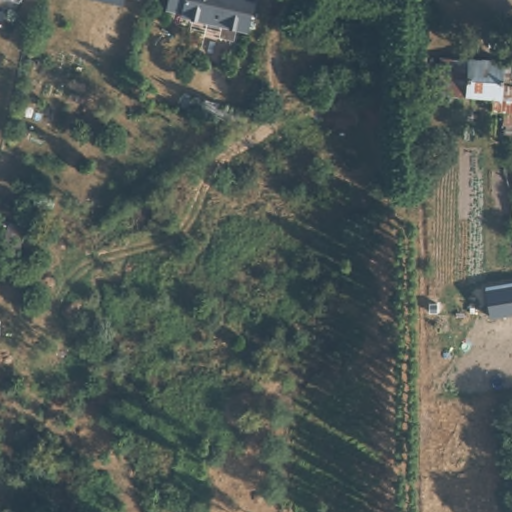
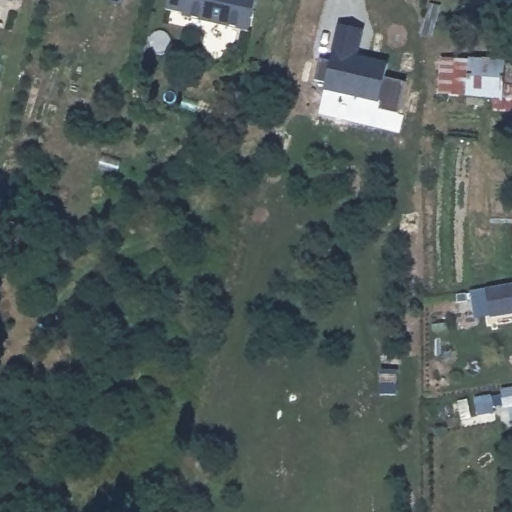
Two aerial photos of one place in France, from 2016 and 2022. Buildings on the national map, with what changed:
unchanged [(246,29),(179,13),(180,10),(164,6),(165,0),(253,0),(246,29)]
new [(385,76),(404,81),(397,114),(376,110),(378,102),(321,90),(322,82),(312,80),(316,57),(328,60),(330,50),(336,24),(362,30),(356,55),(386,60),(385,76)]
unchanged [(512,78),(508,78),(507,85),(506,96),(495,95),(440,92),(441,53),(512,58),(512,78)]
unchanged [(512,124),(504,124),(506,110),(493,108),(495,95),(506,96),(507,85),(512,85),(512,124)]
unchanged [(487,287),(512,283),(512,314),(491,317),(487,287)]

